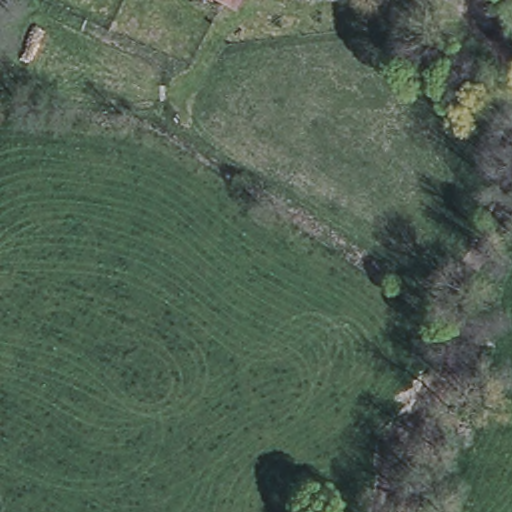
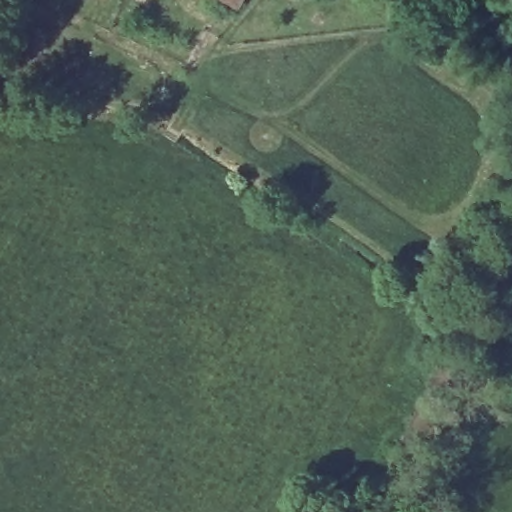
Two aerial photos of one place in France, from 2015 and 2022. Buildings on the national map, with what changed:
unchanged [(231,4),(224,0),(233,0),(231,4)]

